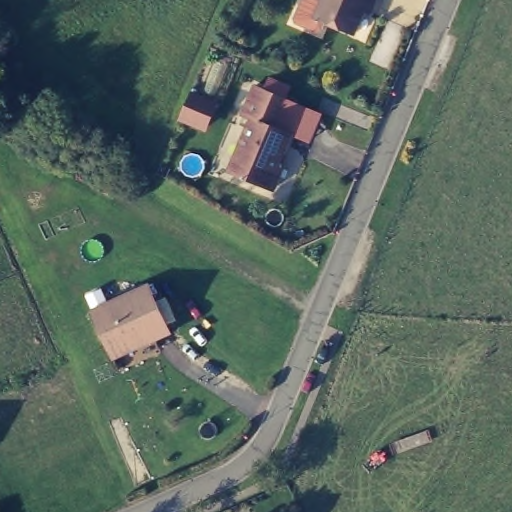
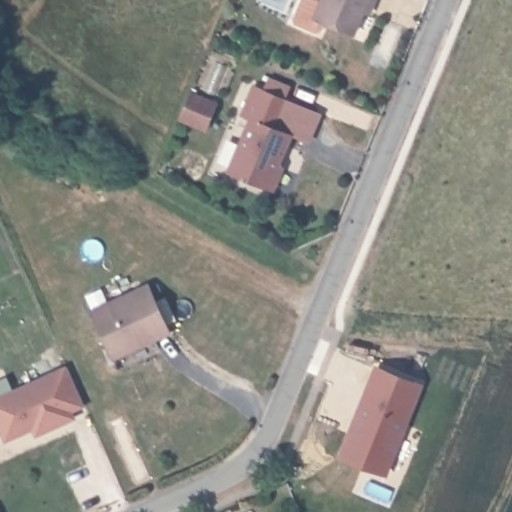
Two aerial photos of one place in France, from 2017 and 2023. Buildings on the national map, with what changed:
unchanged [(347,45),(310,29),(322,0),(373,0),(369,9),(363,23),(358,21),(347,45)]
unchanged [(291,104),(280,132),(289,137),(276,167),(280,169),(271,191),(229,173),(251,122),(240,117),(253,87),(291,104)]
unchanged [(201,124),(187,118),(193,102),(207,107),(201,124)]
unchanged [(169,335),(137,349),(135,344),(111,355),(92,312),(147,287),(169,335)]
new [(337,456),(374,364),(422,383),(385,473),(337,456)]
new [(65,365),(83,406),(72,412),(74,418),(34,436),(30,428),(4,441),(0,433),(0,395),(65,365)]

